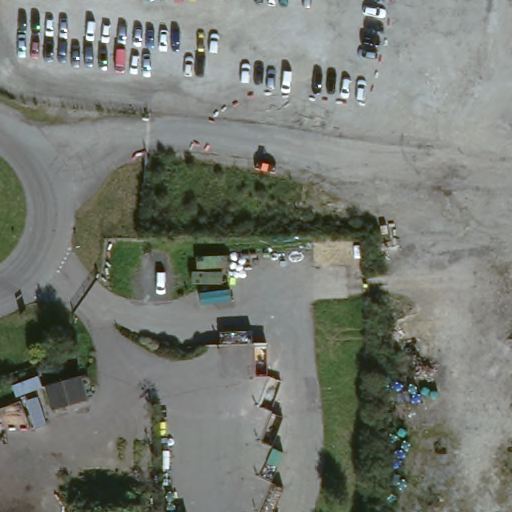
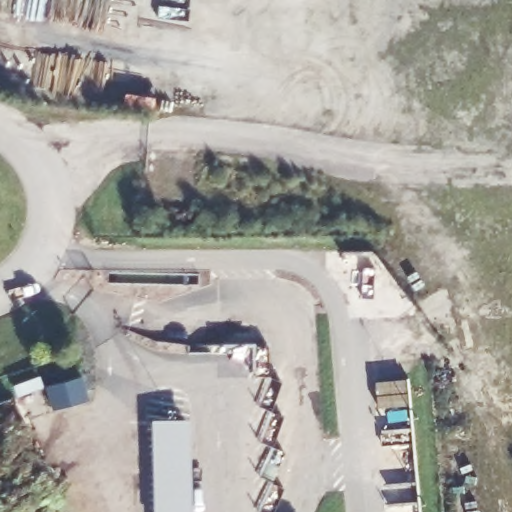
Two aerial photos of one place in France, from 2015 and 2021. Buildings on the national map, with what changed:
unchanged [(71,407),(59,373),(82,365),(94,398),(71,407)]
new [(156,456),(156,427),(188,427),(188,456),(188,512),(156,512),(156,456)]

